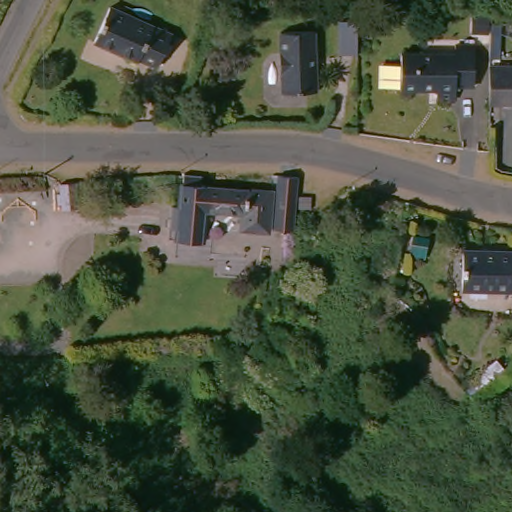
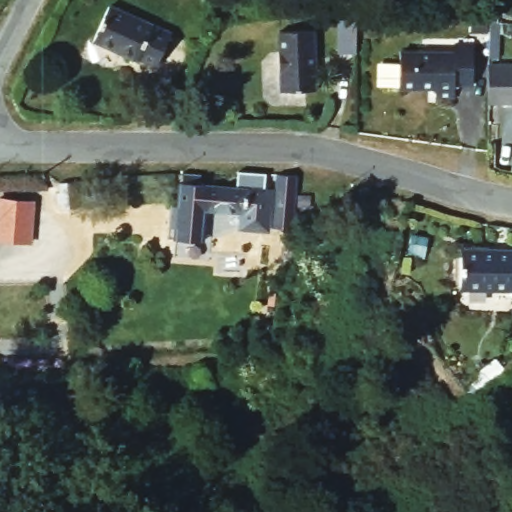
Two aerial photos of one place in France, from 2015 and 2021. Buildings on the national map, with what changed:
unchanged [(171,31),(155,64),(137,55),(135,57),(94,36),(110,2),(171,31)]
unchanged [(363,24),(363,58),(345,57),(345,23),(363,24)]
unchanged [(312,27),(312,87),(277,87),(278,27),(312,27)]
unchanged [(395,57),(395,47),(448,48),(449,40),(468,40),(467,81),(449,81),(449,93),(430,93),(430,84),(394,84),(375,83),(375,57),(395,57)]
unchanged [(512,103),(488,103),(488,60),(512,60),(512,103)]
unchanged [(180,233),(181,219),(180,218),(174,218),(175,204),(182,204),(184,181),(187,181),(187,173),(204,172),(203,183),(275,188),(271,226),(271,228),(244,226),(244,224),(245,211),(210,208),(209,221),(207,236),(180,233)]
unchanged [(299,175),(297,202),(293,228),(274,226),(279,173),(299,175)]
unchanged [(82,211),(75,212),(67,214),(65,187),(80,186),(82,211)]
unchanged [(317,197),(317,207),(305,206),(305,196),(317,197)]
new [(5,200),(39,205),(33,244),(0,240),(0,230),(5,200)]
unchanged [(512,326),(505,326),(505,291),(453,289),(456,250),(507,252),(507,259),(512,260),(512,326)]

